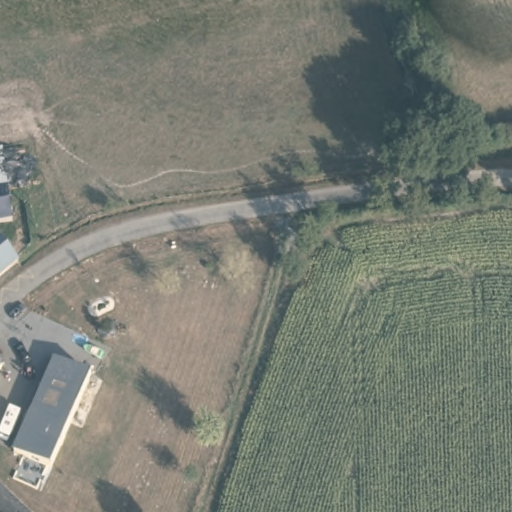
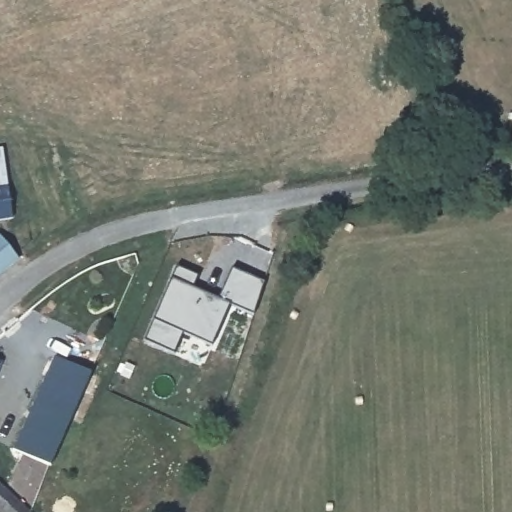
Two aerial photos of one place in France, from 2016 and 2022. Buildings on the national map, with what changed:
unchanged [(0,221),(0,150),(2,149),(11,219),(0,221)]
unchanged [(0,238),(19,259),(0,274),(0,238)]
new [(175,266),(197,275),(191,287),(217,299),(231,269),(262,282),(252,314),(227,304),(211,345),(182,333),(173,354),(143,341),(175,266)]
unchanged [(44,463),(33,484),(13,475),(21,454),(12,448),(54,355),(89,370),(44,463)]
unchanged [(0,365),(0,359),(2,360),(0,365)]
unchanged [(0,508),(0,483),(31,512),(4,512),(0,508)]

